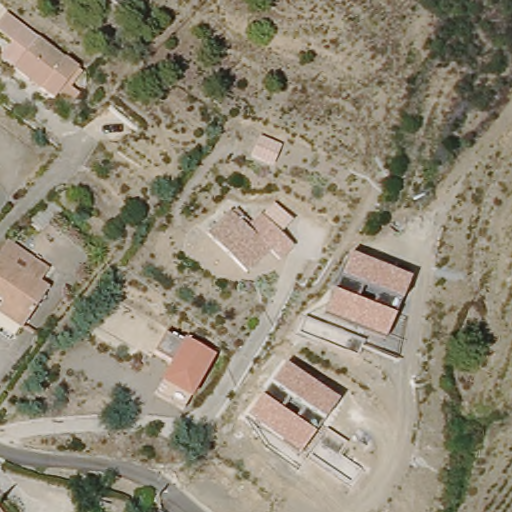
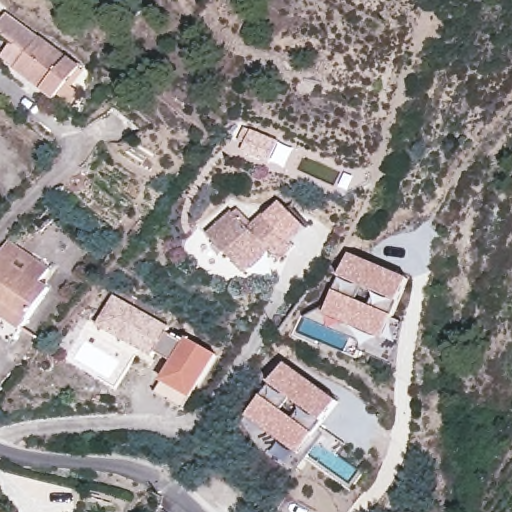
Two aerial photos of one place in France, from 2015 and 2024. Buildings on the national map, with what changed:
unchanged [(23,77),(11,67),(24,50),(7,36),(17,22),(47,44),(88,73),(62,106),(23,77)]
unchanged [(226,216),(246,232),(259,217),(292,250),(283,262),(271,254),(247,276),(204,236),(226,216)]
unchanged [(29,256),(45,265),(34,278),(44,287),(7,336),(0,331),(0,249),(6,242),(29,256)]
unchanged [(334,293),(340,279),(347,260),(350,256),(409,282),(399,305),(393,318),(384,341),(325,316),(334,293)]
new [(152,358),(97,325),(113,296),(169,327),(167,332),(157,355),(152,358)]
unchanged [(171,362),(157,355),(167,332),(184,340),(214,355),(191,396),(162,380),(171,362)]
unchanged [(262,398),(270,385),(286,365),(336,402),(322,422),(312,435),(298,456),(248,419),(262,398)]

